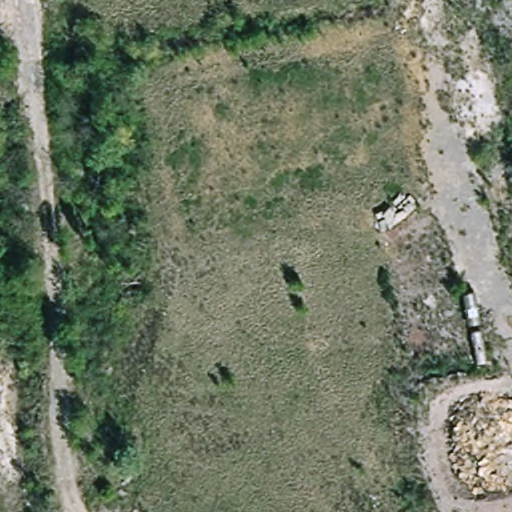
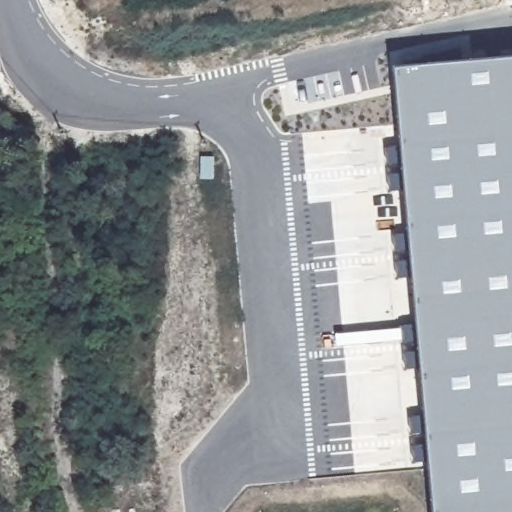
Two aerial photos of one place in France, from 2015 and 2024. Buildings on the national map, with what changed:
new [(512,512),(437,512),(398,67),(512,57),(512,512)]

